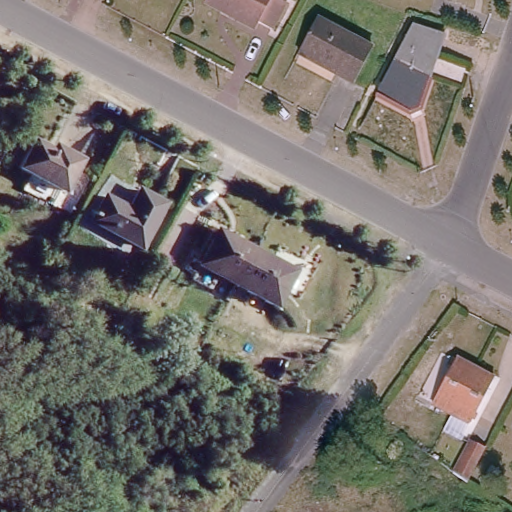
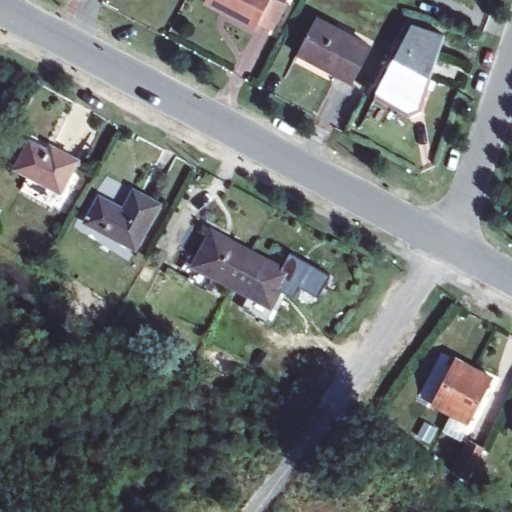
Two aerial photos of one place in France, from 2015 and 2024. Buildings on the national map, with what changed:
unchanged [(258,18),(254,24),(229,10),(210,0),(284,0),(271,25),(258,18)]
unchanged [(370,45),(352,79),(297,49),(316,15),(370,45)]
unchanged [(440,29),(413,109),(372,86),(408,19),(440,29)]
unchanged [(46,149),(49,144),(75,159),(58,189),(15,165),(29,139),(46,149)]
unchanged [(137,188),(161,201),(138,244),(90,219),(102,194),(127,207),(137,188)]
unchanged [(248,250),(287,270),(270,304),(231,283),(195,264),(212,232),(248,250)]
unchanged [(435,402),(458,359),(496,379),(483,404),(473,421),(435,402)]
unchanged [(476,484),(475,487),(460,479),(462,474),(478,446),(492,454),(476,484)]

